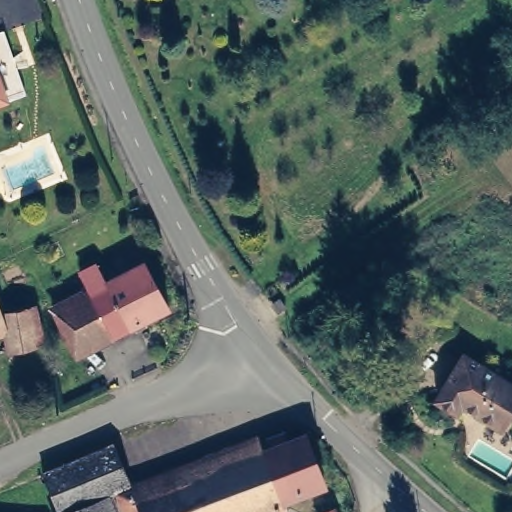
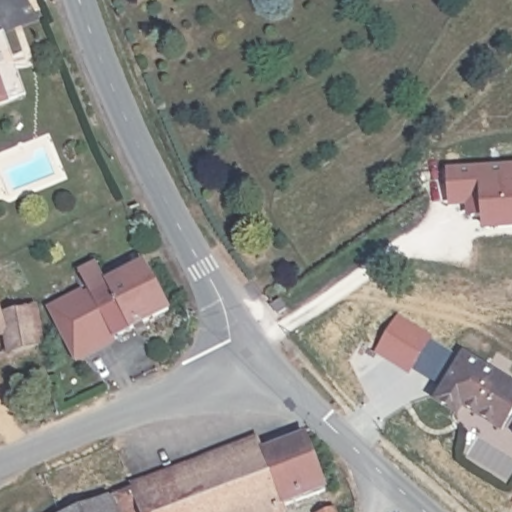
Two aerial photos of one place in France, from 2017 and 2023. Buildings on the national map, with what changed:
unchanged [(0,105),(0,87),(5,104),(0,105)]
new [(482,234),(482,219),(467,218),(465,209),(450,210),(447,170),(512,165),(512,231),(482,234)]
unchanged [(165,322),(89,355),(65,306),(105,289),(100,278),(97,272),(113,264),(117,271),(122,280),(142,272),(165,322)]
unchanged [(0,318),(0,298),(7,315),(0,318)]
unchanged [(47,340),(44,341),(20,349),(10,314),(39,303),(47,340)]
new [(398,319),(430,339),(411,370),(379,351),(398,319)]
unchanged [(509,427),(467,406),(462,412),(444,402),(469,357),(512,379),(512,420),(509,427)]
unchanged [(135,499),(272,447),(270,442),(285,435),(286,442),(306,433),(327,489),(277,509),(279,512),(102,512),(135,499)]
unchanged [(335,511),(336,512),(332,512),(335,511)]

